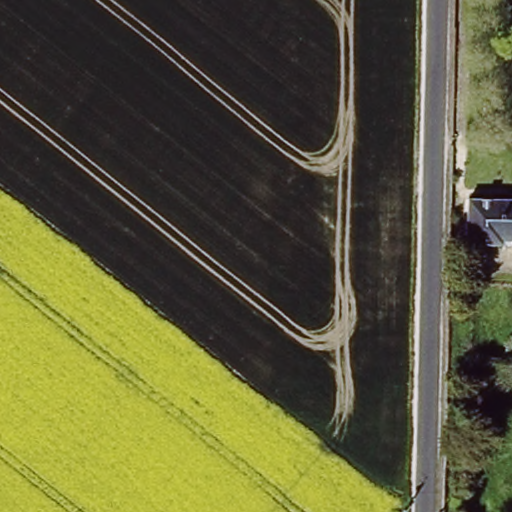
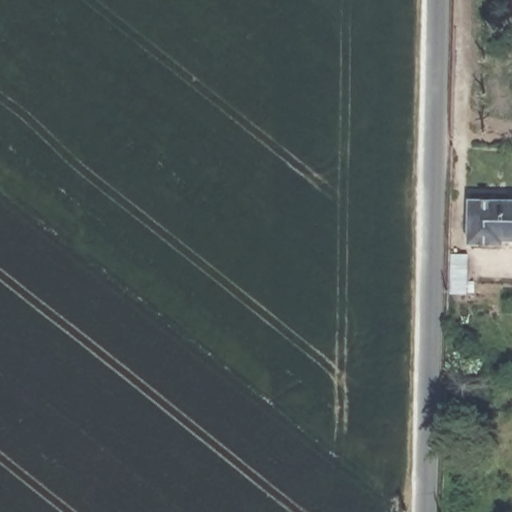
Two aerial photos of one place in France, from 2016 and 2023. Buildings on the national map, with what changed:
unchanged [(499,246),(461,244),(463,201),(512,203),(512,242),(499,241),(499,246)]

